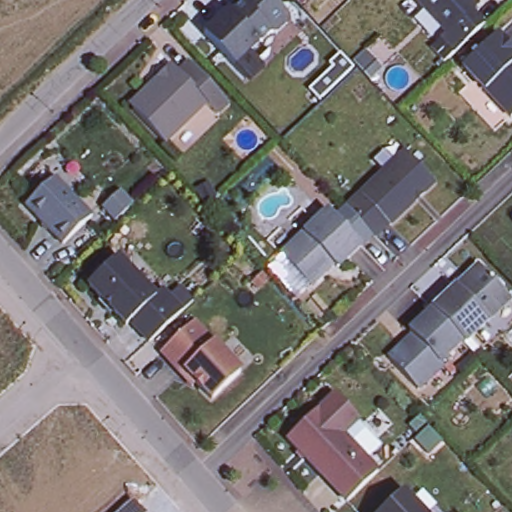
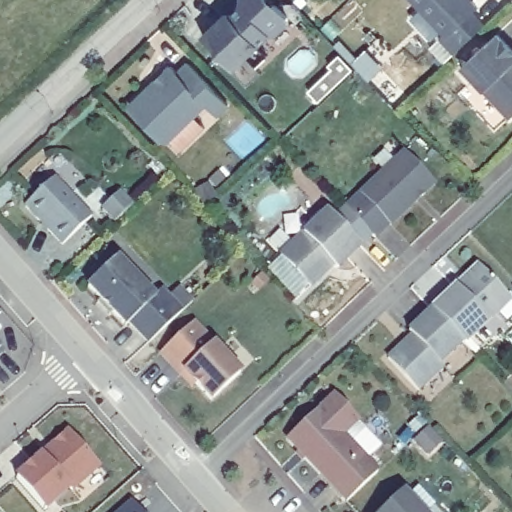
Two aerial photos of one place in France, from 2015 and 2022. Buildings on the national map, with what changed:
unchanged [(202,46),(227,22),(240,9),(240,4),(244,0),(260,0),(265,6),(265,15),(274,15),(287,26),(285,34),(275,42),(268,43),(234,76),(202,46)]
unchanged [(454,52),(438,37),(443,31),(413,0),(469,0),(473,4),(468,10),(482,23),(454,52)]
unchanged [(494,35),(512,54),(512,114),(509,117),(460,67),(494,35)]
new [(362,52),(380,71),(368,82),(350,63),(362,52)]
unchanged [(330,68),(327,64),(338,54),(352,69),(317,101),(307,90),(330,68)]
unchanged [(162,142),(132,109),(131,102),(139,94),(147,95),(154,88),(149,83),(169,65),(176,73),(187,63),(225,104),(214,115),(204,104),(162,142)]
unchanged [(344,207),(404,150),(433,181),(389,225),(387,224),(372,237),(344,207)]
unchanged [(25,204),(53,177),(90,216),(62,243),(25,204)]
unchanged [(119,194),(130,206),(114,222),(102,209),(119,194)]
unchanged [(279,255),(326,210),(359,244),(335,268),(329,261),(322,267),(322,272),(309,286),(279,255)]
unchanged [(174,298),(180,293),(191,306),(180,316),(179,317),(147,347),(127,327),(124,330),(87,291),(117,262),(154,301),(160,295),(170,305),(175,300),(174,298)]
unchanged [(463,344),(460,341),(431,310),(454,288),(457,291),(464,285),(465,277),(477,266),(510,300),(463,344)]
unchanged [(460,341),(437,362),(441,366),(415,391),(385,359),(402,342),(405,344),(412,337),(407,331),(431,310),(460,341)]
unchanged [(180,375),(159,353),(191,322),(240,372),(212,400),(195,383),(192,387),(180,375)]
new [(0,348),(4,355),(0,358),(0,348)]
unchanged [(346,506),(287,443),(332,401),(356,426),(340,441),(375,477),(346,506)]
new [(428,428),(442,443),(428,458),(413,442),(428,428)]
new [(100,467),(74,491),(72,488),(47,512),(15,477),(42,453),(68,429),(100,467)]
unchanged [(419,512),(380,512),(400,492),(419,512)]
unchanged [(141,512),(121,512),(132,502),(141,512)]

